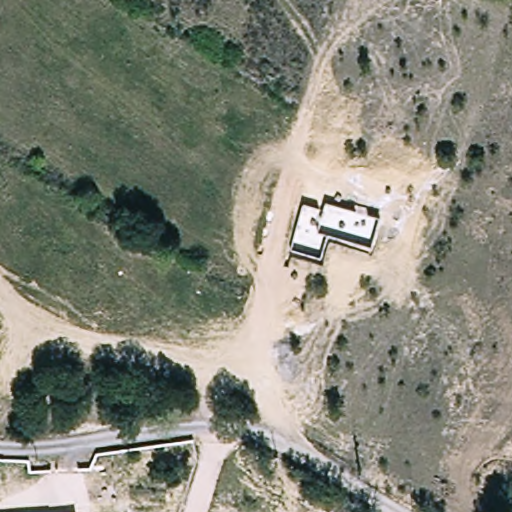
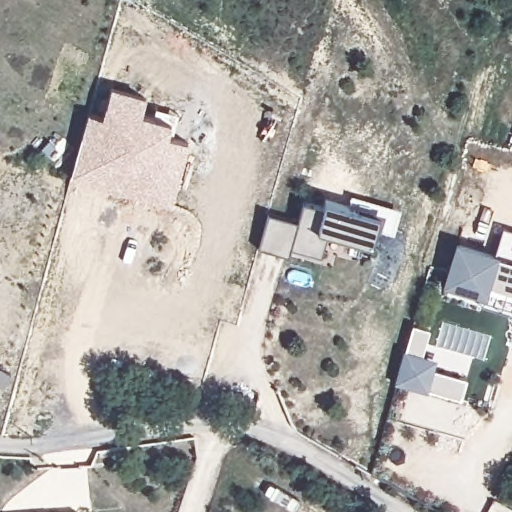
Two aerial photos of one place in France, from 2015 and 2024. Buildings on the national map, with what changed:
new [(172,205),(71,180),(89,112),(102,117),(111,87),(148,96),(143,115),(172,122),(169,135),(189,142),(172,205)]
unchanged [(324,207),(326,200),(380,216),(372,246),(328,233),(321,257),(292,249),(303,202),(324,207)]
new [(494,267),(503,239),(512,241),(512,305),(486,297),(483,307),(445,296),(457,257),(494,267)]
new [(434,334),(426,362),(439,366),(436,374),(470,384),(465,404),(401,386),(418,329),(434,334)]

